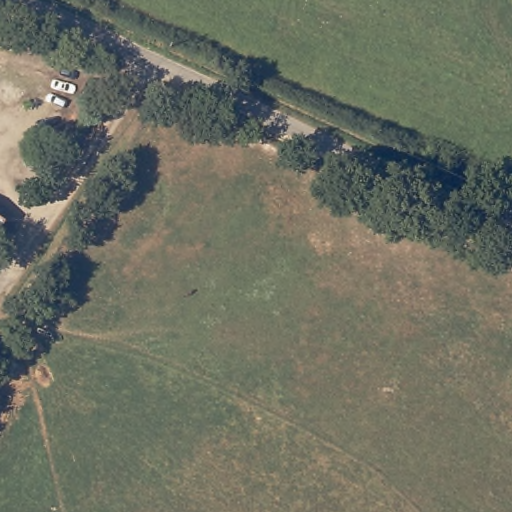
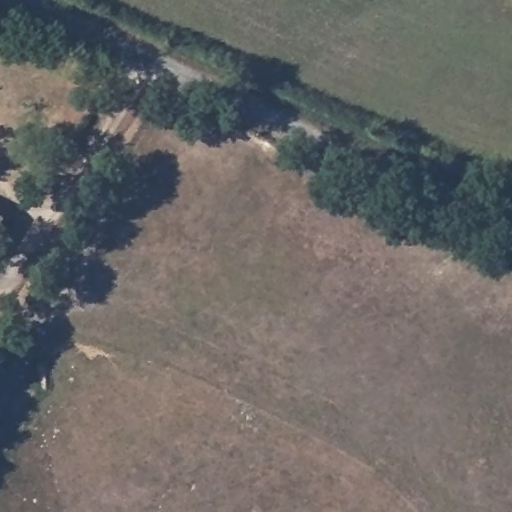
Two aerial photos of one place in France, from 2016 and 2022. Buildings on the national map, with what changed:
unchanged [(0,223),(0,214),(4,217),(0,223)]

